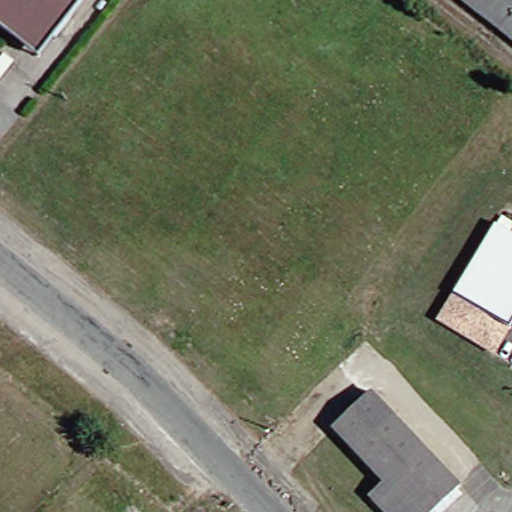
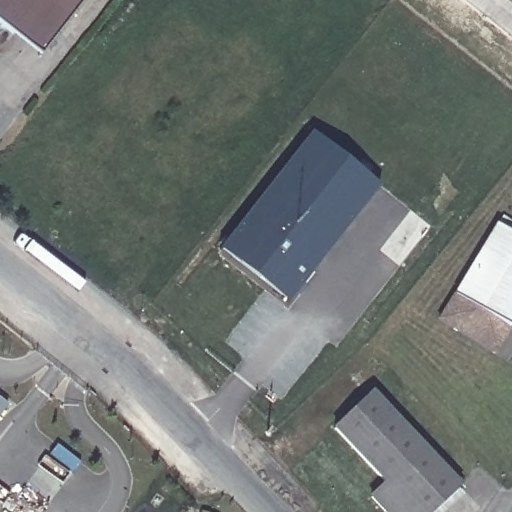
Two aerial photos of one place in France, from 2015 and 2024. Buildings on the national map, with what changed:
unchanged [(0,26),(0,0),(93,0),(43,61),(0,26)]
unchanged [(465,0),(512,0),(512,37),(465,0)]
new [(317,131),(384,183),(293,301),(226,246),(317,131)]
unchanged [(495,358),(436,322),(453,293),(494,225),(512,235),(512,327),(511,329),(495,358)]
unchanged [(340,427),(381,394),(463,487),(436,512),(415,512),(390,483),(340,427)]
new [(0,422),(0,396),(13,406),(0,422)]
unchanged [(415,512),(385,512),(374,499),(390,483),(415,512)]

